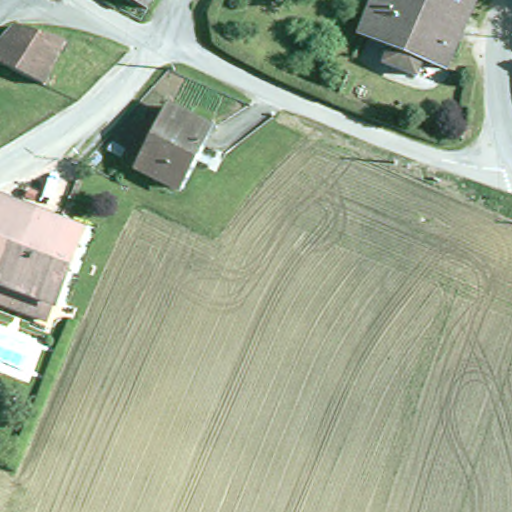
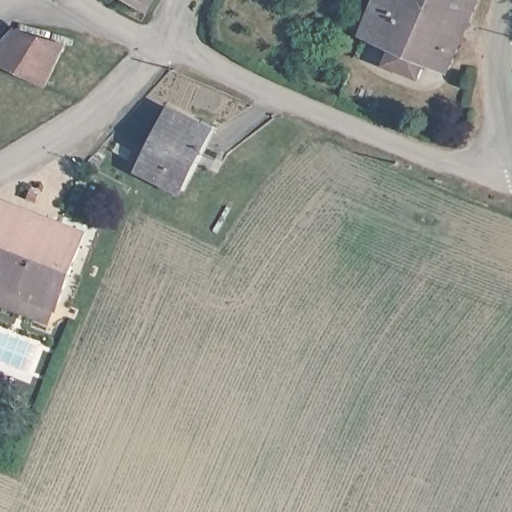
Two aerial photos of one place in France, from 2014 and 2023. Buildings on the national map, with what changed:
unchanged [(149,0),(143,9),(130,0),(149,0)]
unchanged [(375,0),(473,0),(445,67),(425,59),(415,75),(382,60),(389,46),(360,34),(367,16),(375,0)]
unchanged [(0,42),(8,29),(12,24),(45,31),(61,36),(45,81),(0,63),(0,42)]
unchanged [(173,189),(132,166),(164,108),(206,128),(175,185),(173,189)]
unchanged [(0,195),(80,228),(50,299),(0,279),(0,195)]
unchanged [(0,297),(0,279),(50,299),(44,315),(0,297)]

